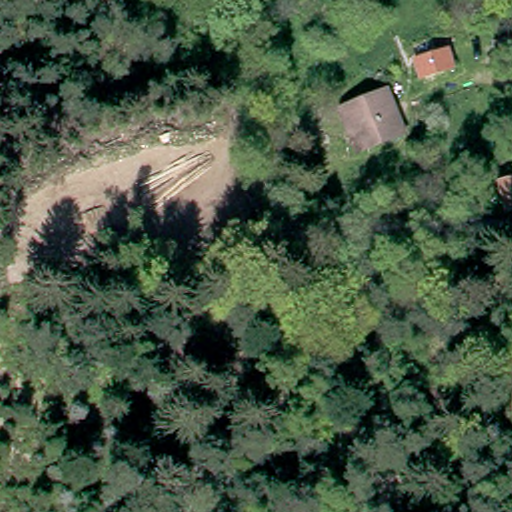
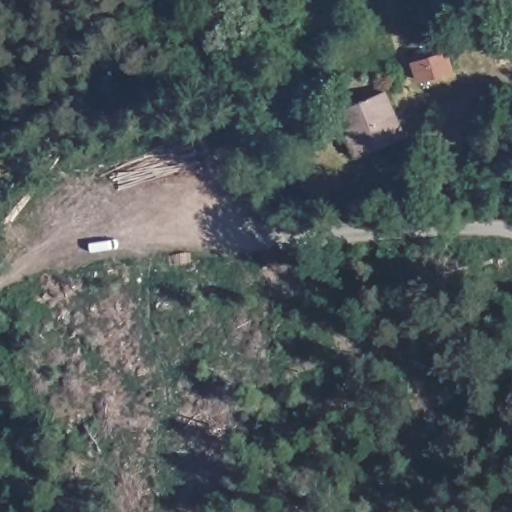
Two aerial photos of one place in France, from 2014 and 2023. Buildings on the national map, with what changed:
unchanged [(428,79),(421,62),(454,50),(459,67),(428,79)]
unchanged [(354,151),(335,110),(380,89),(399,130),(354,151)]

